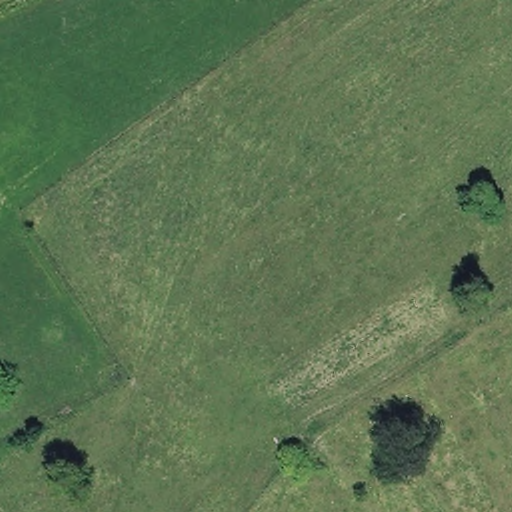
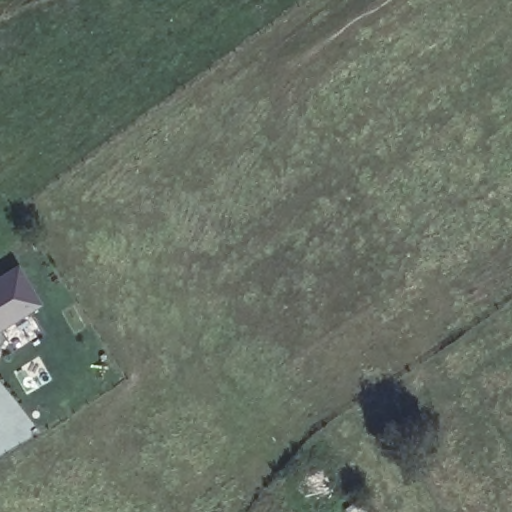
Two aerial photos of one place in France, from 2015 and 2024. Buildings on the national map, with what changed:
new [(40,304),(0,329),(0,276),(18,265),(40,304)]

